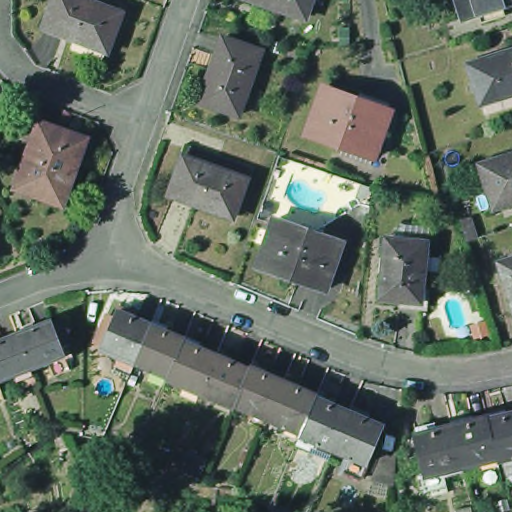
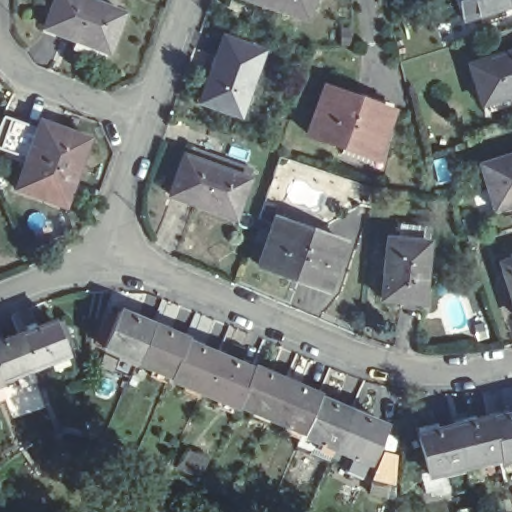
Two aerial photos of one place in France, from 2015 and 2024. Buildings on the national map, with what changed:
unchanged [(56,0),(74,0),(121,17),(107,56),(44,32),(56,0)]
unchanged [(306,22),(243,0),(314,0),(306,22)]
unchanged [(481,27),(478,17),(461,22),(454,0),(512,0),(512,6),(502,10),(505,19),(481,27)]
unchanged [(266,55),(244,118),(206,104),(228,41),(266,55)]
unchanged [(493,112),(491,107),(488,108),(486,102),(474,62),(512,51),(512,105),(493,112)]
unchanged [(390,116),(374,162),(308,138),(325,92),(390,116)]
unchanged [(39,126),(85,143),(63,209),(16,192),(39,126)]
unchanged [(234,226),(171,202),(184,165),(188,167),(191,156),(251,177),(248,187),(234,226)]
unchanged [(497,215),(483,169),(509,162),(512,161),(512,210),(497,215)]
unchanged [(469,220),(475,238),(466,241),(463,232),(461,223),(469,220)]
unchanged [(343,247),(326,293),(259,269),(277,222),(343,247)]
unchanged [(426,247),(421,307),(381,302),(387,243),(426,247)]
unchanged [(512,264),(512,303),(501,268),(512,264)]
unchanged [(102,352),(118,315),(152,330),(136,367),(102,352)]
unchanged [(21,332),(30,328),(31,332),(49,326),(63,362),(28,376),(13,340),(23,336),(21,332)]
unchanged [(136,367),(152,330),(184,343),(184,346),(169,381),(136,367)]
unchanged [(28,376),(0,387),(0,345),(13,340),(28,376)]
unchanged [(168,383),(169,381),(184,346),(216,360),(201,397),(168,383)]
unchanged [(201,397),(216,360),(249,374),(236,408),(234,411),(201,397)]
unchanged [(236,408),(249,374),(251,372),(284,386),(269,422),(236,408)]
unchanged [(301,437),(269,422),(284,386),(317,400),(319,393),(333,400),(329,408),(349,417),(334,453),(301,440),(301,437)]
unchanged [(361,415),(371,418),(369,425),(383,431),(368,468),(334,453),(349,417),(359,421),(361,415)]
unchanged [(498,463),(498,461),(489,425),(512,419),(512,460),(498,463)]
unchanged [(463,470),(453,431),(488,422),(489,425),(498,461),(463,470)]
unchanged [(418,439),(416,431),(436,426),(437,435),(453,431),(463,470),(427,478),(418,439)]

